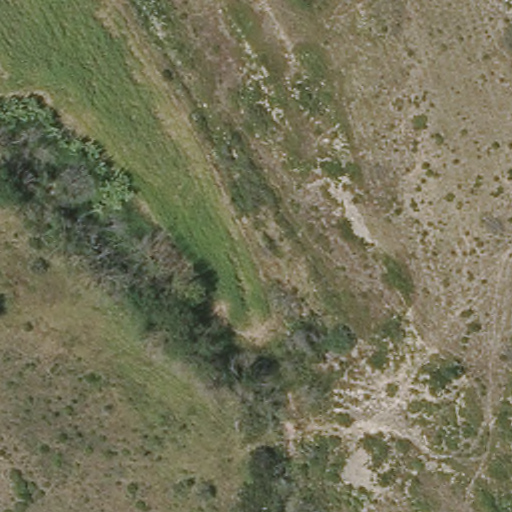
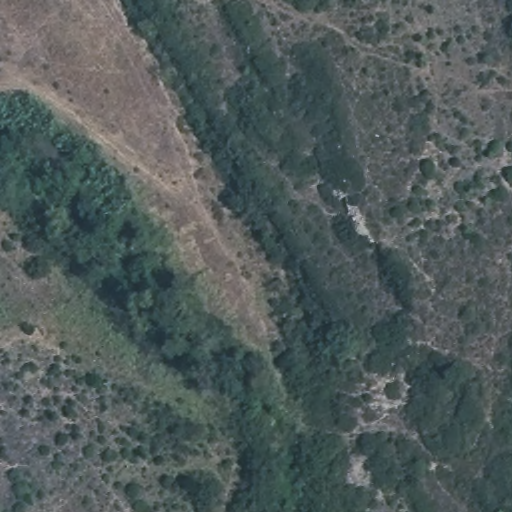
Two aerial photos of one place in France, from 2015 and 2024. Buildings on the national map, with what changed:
[]

